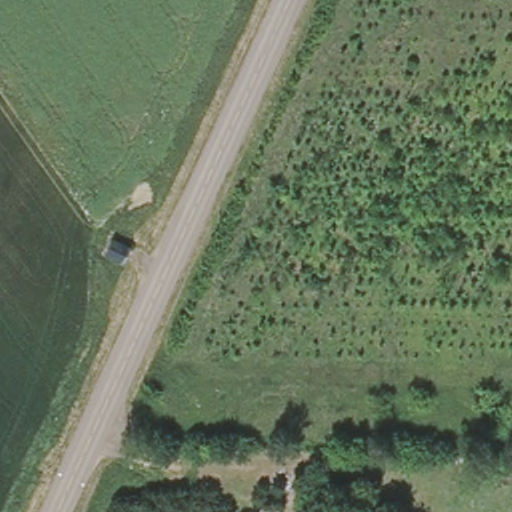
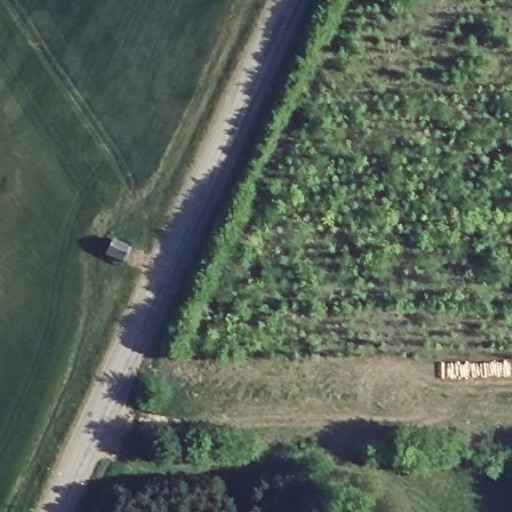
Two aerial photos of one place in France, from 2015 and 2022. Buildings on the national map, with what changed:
unchanged [(105,238),(123,247),(116,263),(98,254),(105,238)]

